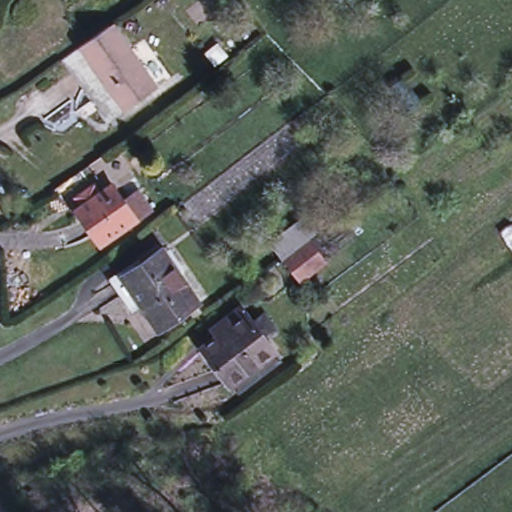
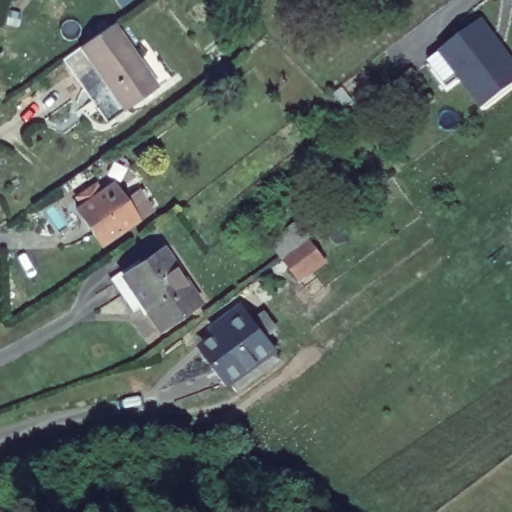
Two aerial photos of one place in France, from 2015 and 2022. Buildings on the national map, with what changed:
unchanged [(117,18),(162,81),(132,104),(86,39),(117,18)]
new [(512,86),(482,110),(458,78),(447,88),(427,61),(437,51),(482,19),(512,56),(512,86)]
unchanged [(86,39),(132,104),(113,116),(68,53),(86,39)]
unchanged [(403,77),(422,101),(409,111),(390,87),(403,77)]
unchanged [(77,206),(95,193),(101,201),(113,193),(125,209),(140,199),(152,218),(137,228),(102,252),(77,217),(82,214),(77,206)]
unchanged [(270,242),(298,220),(320,205),(332,221),(311,237),(283,258),(270,242)]
unchanged [(285,261),(312,240),(341,218),(355,235),(326,258),(298,279),(285,261)]
unchanged [(112,282),(115,280),(123,274),(163,248),(198,302),(159,328),(142,303),(135,308),(131,310),(112,282)]
unchanged [(215,329),(242,308),(253,323),(265,314),(275,328),(264,337),(274,351),(231,383),(203,346),(219,334),(215,329)]

